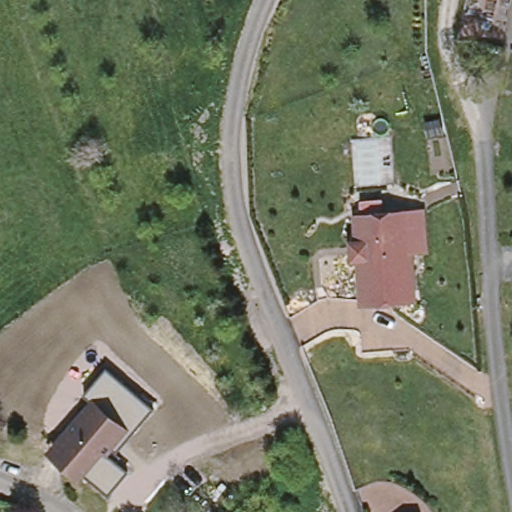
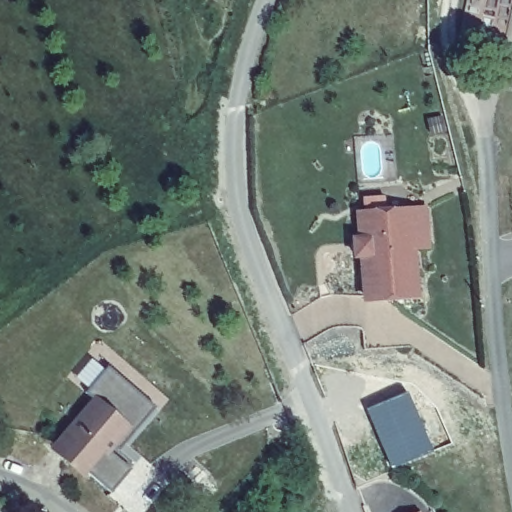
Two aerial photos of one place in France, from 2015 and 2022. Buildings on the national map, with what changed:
unchanged [(354,237),(361,237),(361,214),(410,213),(424,212),(425,248),(411,249),(413,296),(364,298),(363,254),(354,255),(354,237)]
new [(434,450),(393,467),(369,406),(408,389),(434,450)]
unchanged [(129,427),(88,473),(57,443),(98,398),(129,427)]

